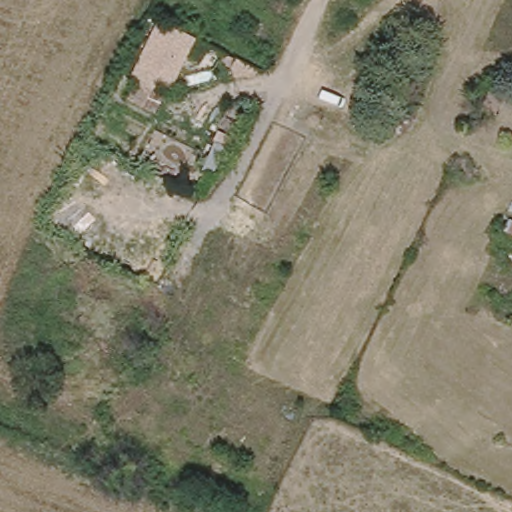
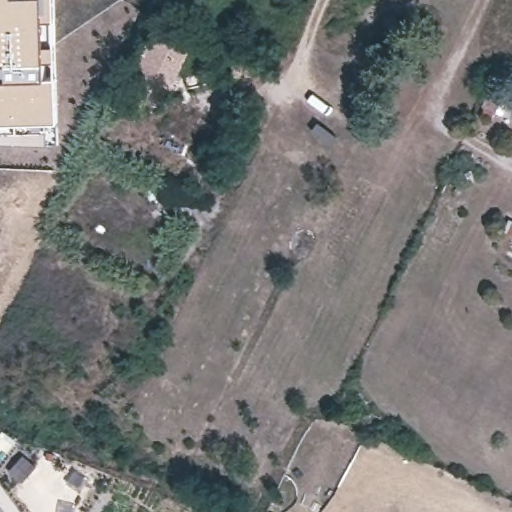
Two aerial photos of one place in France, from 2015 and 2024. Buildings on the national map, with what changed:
new [(60,118),(58,141),(48,141),(0,140),(0,0),(56,0),(60,118)]
unchanged [(161,24),(203,57),(193,77),(177,71),(153,108),(129,97),(161,24)]
unchanged [(494,81),(502,86),(499,92),(505,95),(503,99),(507,101),(504,109),(499,107),(496,112),(482,105),(494,81)]

